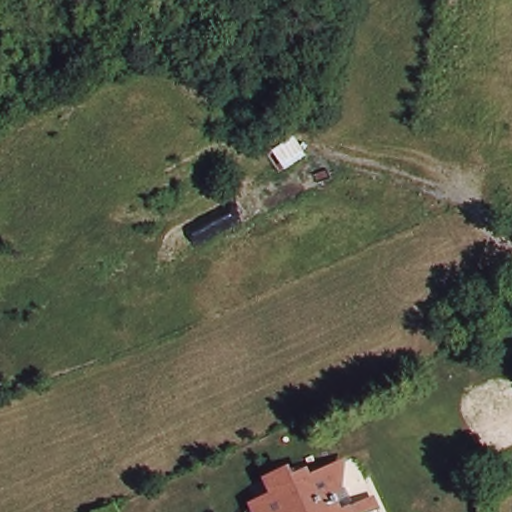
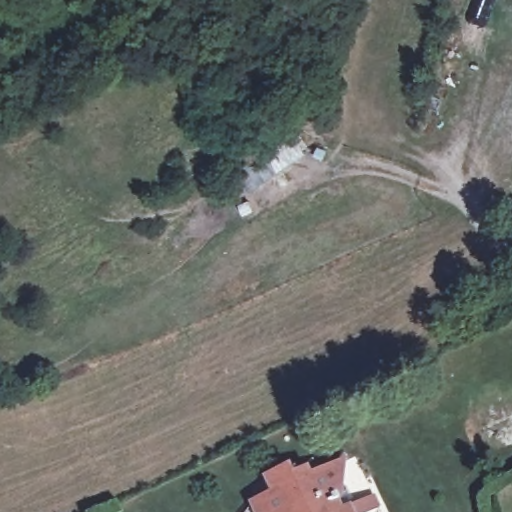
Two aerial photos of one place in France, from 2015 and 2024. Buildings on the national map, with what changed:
unchanged [(270,489),(262,474),(286,463),(290,472),(303,466),(306,472),(329,461),(337,468),(336,492),(332,494),(335,499),(333,500),(335,507),(369,492),(373,502),(377,512),(238,512),(246,500),(270,489)]

